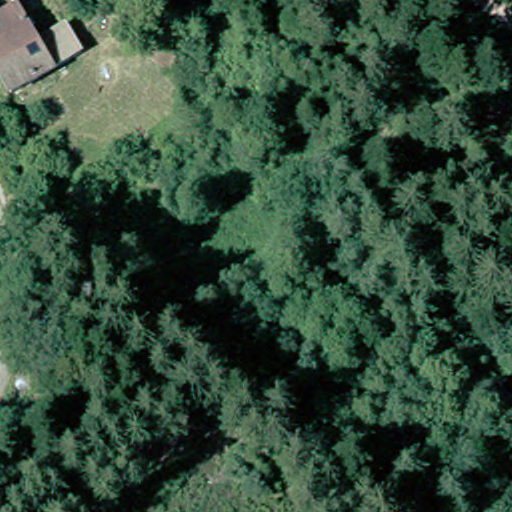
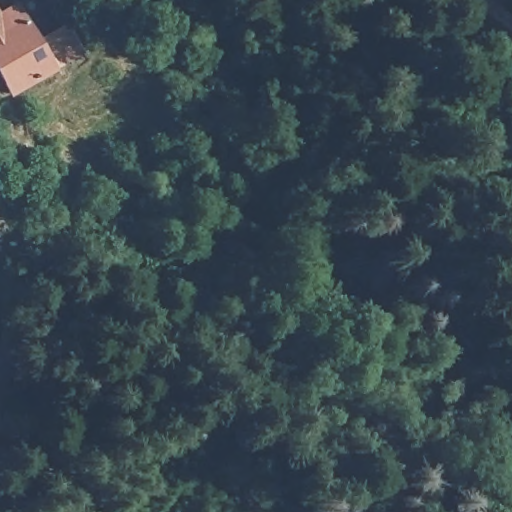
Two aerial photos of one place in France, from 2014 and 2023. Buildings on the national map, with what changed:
unchanged [(40,30),(58,62),(4,95),(0,88),(0,0),(9,0),(30,37),(40,30)]

